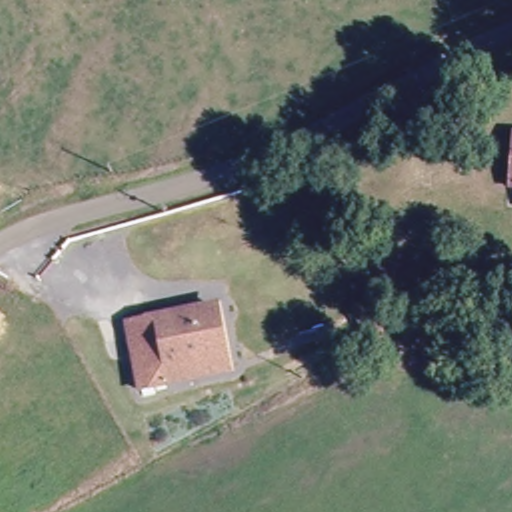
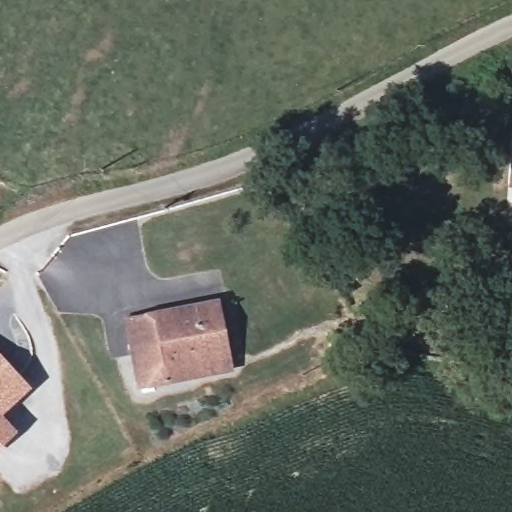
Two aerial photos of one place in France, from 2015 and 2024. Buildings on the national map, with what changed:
unchanged [(499,181),(500,167),(504,137),(505,124),(512,125),(512,182),(499,181)]
unchanged [(375,288),(395,321),(382,331),(362,296),(375,288)]
unchanged [(171,385),(140,390),(127,323),(215,305),(225,360),(227,375),(171,385)]
new [(0,415),(0,356),(30,388),(0,415)]
new [(0,415),(16,431),(0,446),(0,415)]

